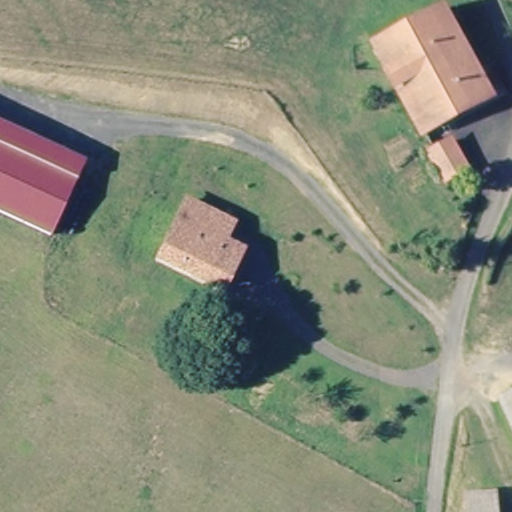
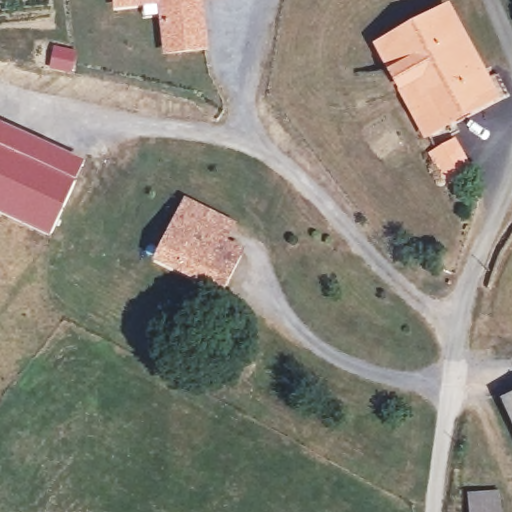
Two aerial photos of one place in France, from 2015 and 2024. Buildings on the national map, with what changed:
new [(208,50),(162,56),(155,6),(112,10),(111,0),(206,0),(203,0),(208,50)]
unchanged [(495,102),(492,97),(429,135),(402,89),(379,44),(445,9),(484,79),(496,76),(506,95),(495,102)]
new [(52,44),(77,49),(72,73),(48,68),(52,44)]
unchanged [(83,165),(76,184),(0,154),(0,132),(83,165)]
unchanged [(453,179),(440,158),(448,151),(456,149),(466,171),(460,177),(453,179)]
unchanged [(52,242),(0,221),(0,154),(76,184),(52,242)]
unchanged [(149,262),(168,219),(172,221),(181,205),(223,224),(216,239),(231,245),(211,288),(149,262)]
unchanged [(512,403),(512,418),(506,405),(512,403)]
unchanged [(472,495),(504,493),(506,512),(473,512),(472,495)]

